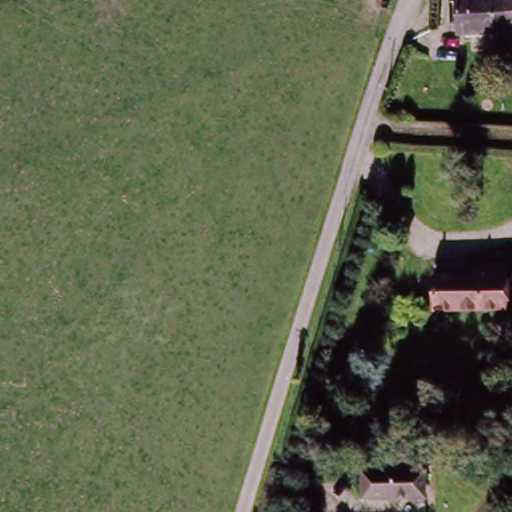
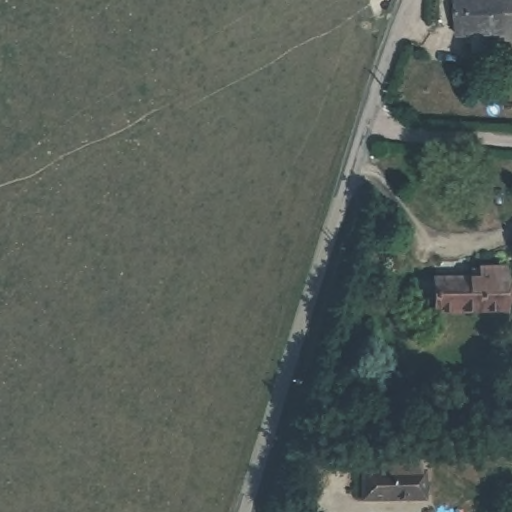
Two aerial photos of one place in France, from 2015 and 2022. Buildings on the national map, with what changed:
unchanged [(504,0),(505,14),(506,37),(457,37),(457,17),(456,0),(474,0),(504,0)]
unchanged [(433,316),(432,279),(476,279),(476,266),(507,266),(508,313),(433,316)]
unchanged [(379,473),(378,455),(420,455),(419,475),(427,475),(425,500),(364,499),(364,473),(379,473)]

